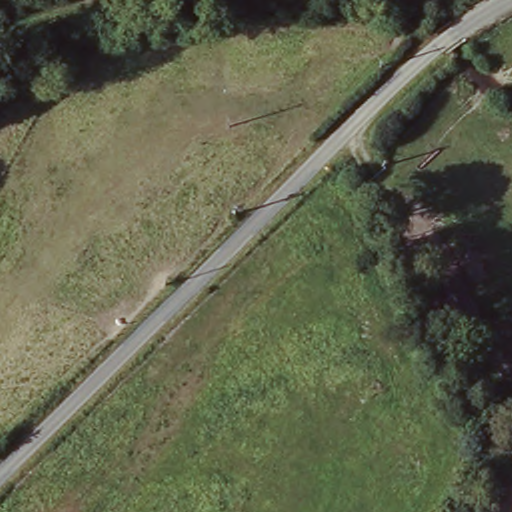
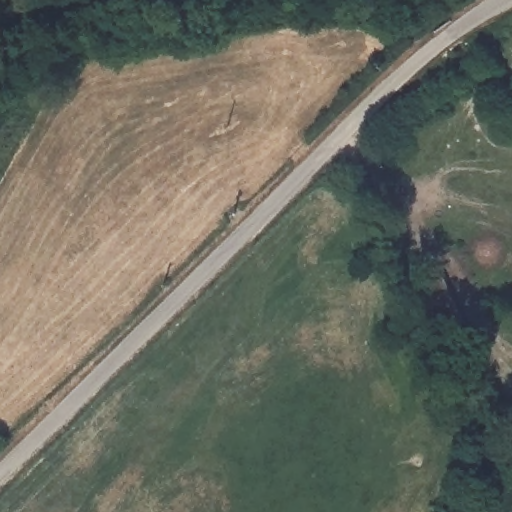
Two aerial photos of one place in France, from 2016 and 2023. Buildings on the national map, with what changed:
unchanged [(352,70),(357,64),(365,71),(359,77),(352,70)]

